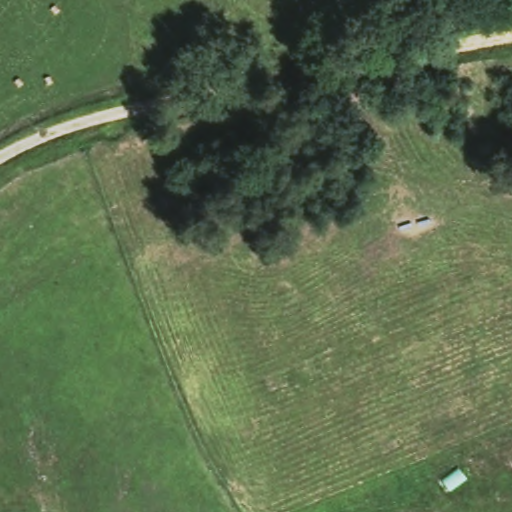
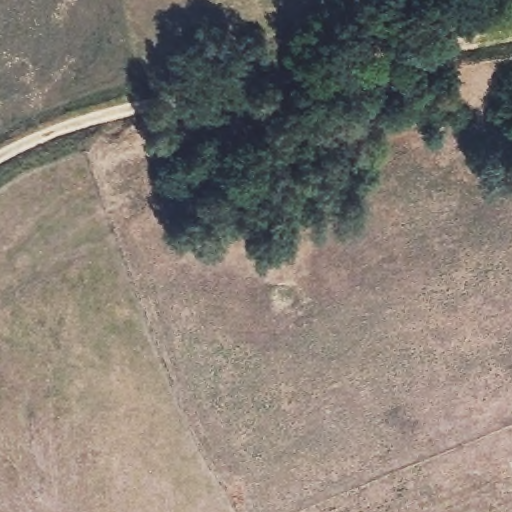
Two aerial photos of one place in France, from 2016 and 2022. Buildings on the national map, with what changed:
[]

